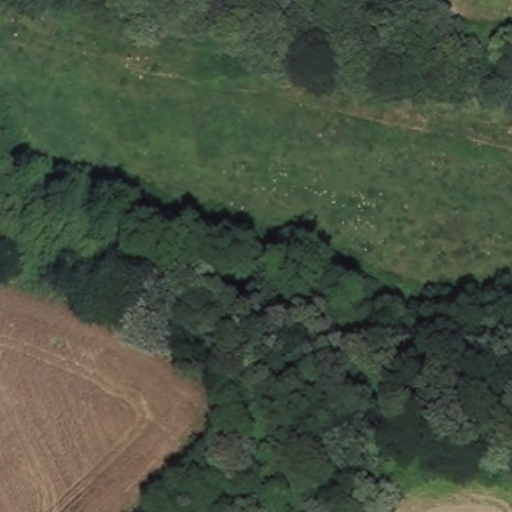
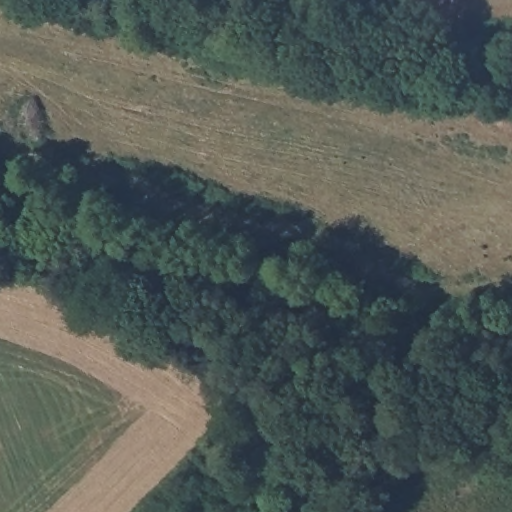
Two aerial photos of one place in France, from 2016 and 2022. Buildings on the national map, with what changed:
[]

